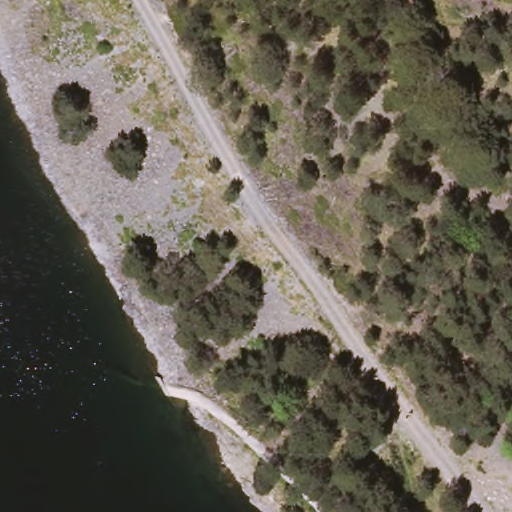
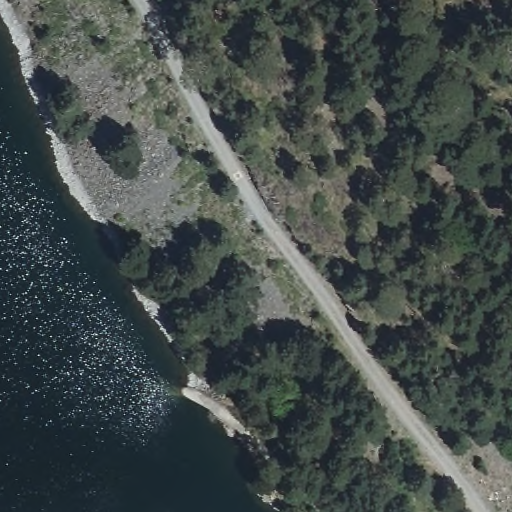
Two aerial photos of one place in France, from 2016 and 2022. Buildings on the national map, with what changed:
[]

